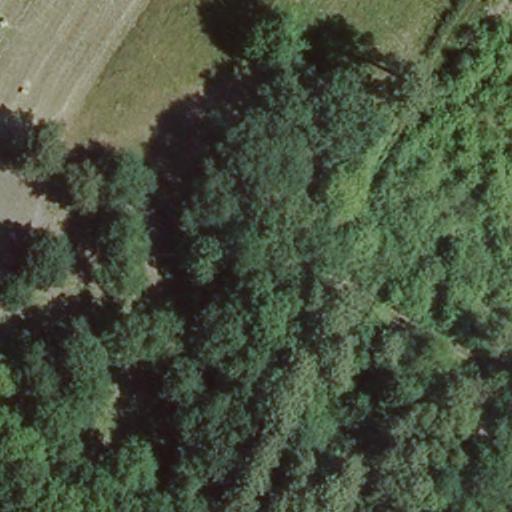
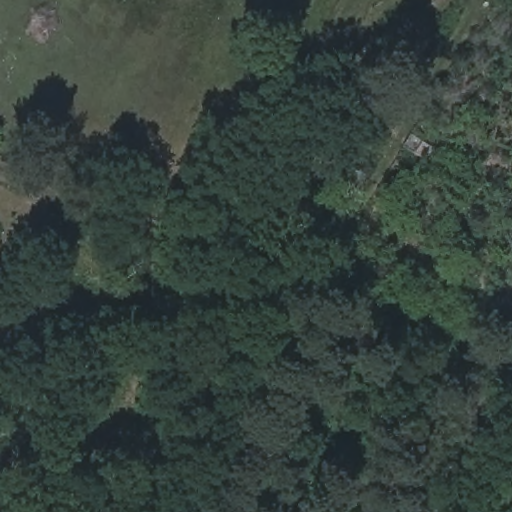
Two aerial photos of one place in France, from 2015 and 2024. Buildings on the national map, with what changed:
[]

